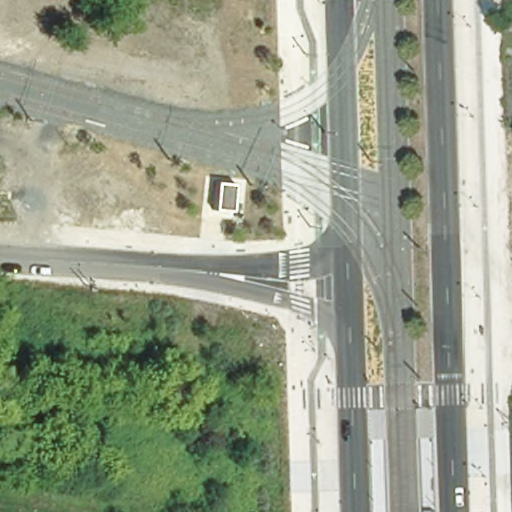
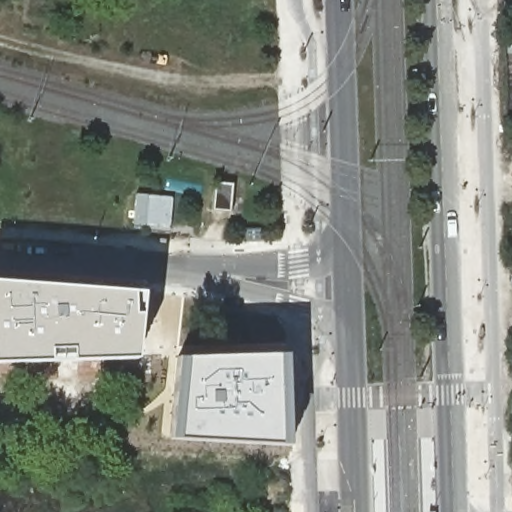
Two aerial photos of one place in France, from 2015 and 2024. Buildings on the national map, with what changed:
new [(216,181),(235,183),(232,212),(214,210),(216,181)]
new [(0,365),(0,282),(145,293),(139,359),(0,365)]
new [(170,439),(179,358),(287,356),(290,446),(170,439)]

